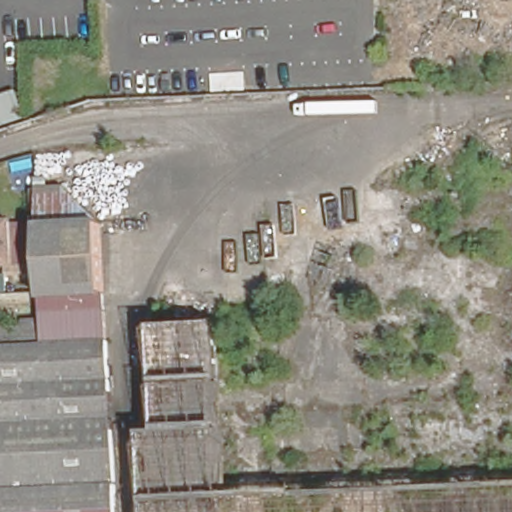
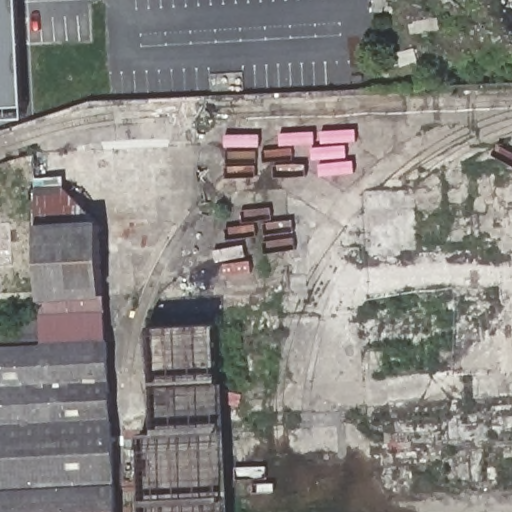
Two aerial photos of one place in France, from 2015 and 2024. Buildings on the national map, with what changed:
new [(0,107),(0,0),(18,0),(24,105),(0,107)]
unchanged [(107,488),(0,493),(0,321),(24,320),(36,320),(39,319),(34,194),(63,193),(94,219),(99,332),(107,488)]
unchanged [(14,269),(15,288),(0,288),(0,225),(12,224),(14,269)]
unchanged [(151,431),(145,317),(213,317),(230,512),(144,512),(142,486),(139,432),(151,431)]
unchanged [(0,493),(107,488),(108,512),(0,512),(0,493)]

